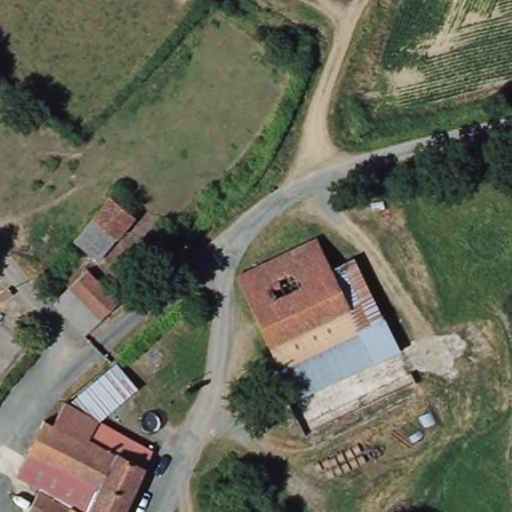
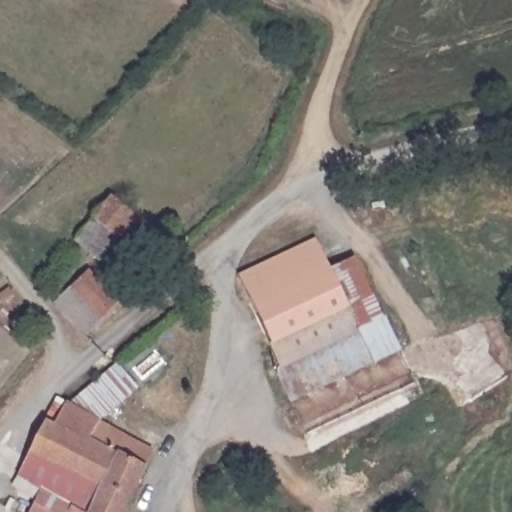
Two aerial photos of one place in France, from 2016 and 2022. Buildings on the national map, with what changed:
unchanged [(74,240),(110,196),(135,216),(99,260),(74,240)]
unchanged [(281,367),(280,365),(238,276),(315,240),(329,269),(358,330),(281,367)]
unchanged [(329,269),(353,259),(381,319),(358,330),(329,269)]
unchanged [(102,319),(69,287),(87,269),(120,301),(102,319)]
unchanged [(52,303),(69,287),(102,319),(85,335),(52,303)]
unchanged [(0,298),(0,295),(8,288),(12,293),(2,300),(0,298)]
unchanged [(289,401),(276,375),(276,369),(280,365),(281,367),(358,330),(381,319),(383,318),(398,348),(289,401)]
unchanged [(69,404),(116,365),(136,388),(97,421),(69,404)]
unchanged [(115,457),(52,425),(52,424),(62,407),(65,402),(69,404),(97,421),(152,451),(124,512),(90,512),(115,457)]
unchanged [(39,490),(16,474),(44,420),(52,424),(52,425),(115,457),(90,512),(85,512),(72,505),(69,512),(28,512),(39,490)]
unchanged [(72,505),(85,512),(69,512),(72,505)]

